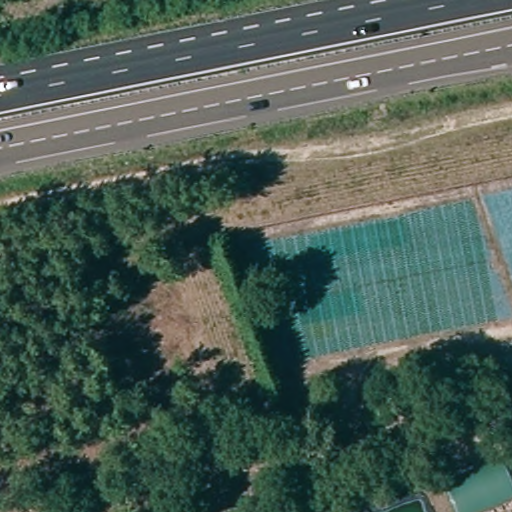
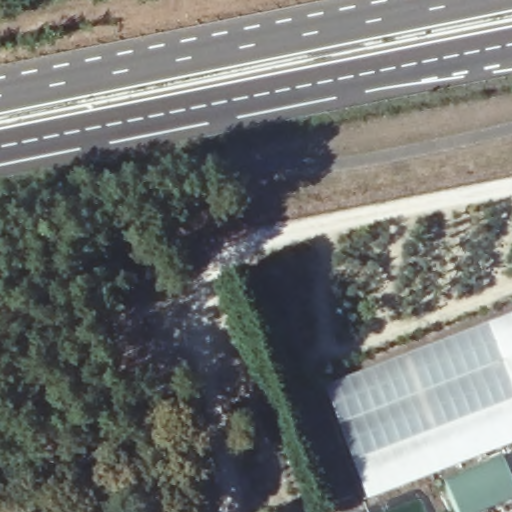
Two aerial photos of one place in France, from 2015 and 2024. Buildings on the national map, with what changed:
new [(320,386),(512,313),(512,442),(360,501),(320,386)]
new [(446,482),(502,459),(512,482),(512,500),(480,512),(457,512),(446,482)]

